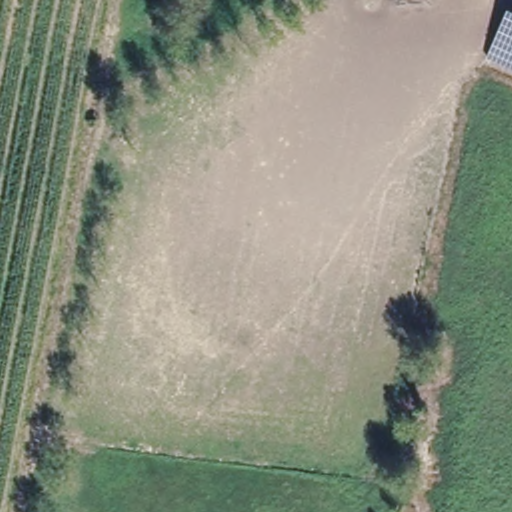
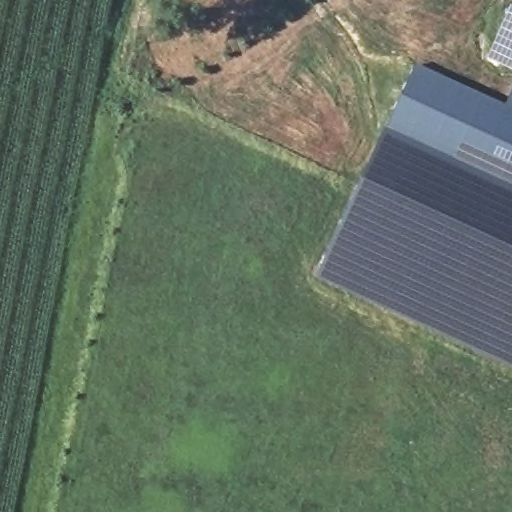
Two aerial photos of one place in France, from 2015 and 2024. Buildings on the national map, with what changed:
unchanged [(512,66),(486,54),(509,7),(512,8),(512,66)]
new [(512,188),(384,130),(413,64),(512,109),(512,188)]
new [(512,91),(512,109),(505,106),(512,91)]
new [(512,366),(316,276),(384,130),(512,187),(512,366)]

